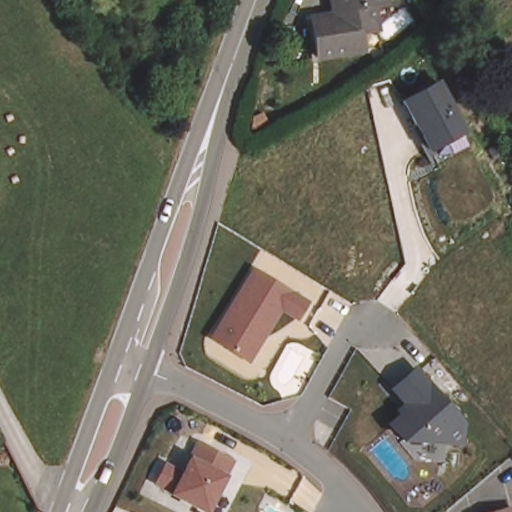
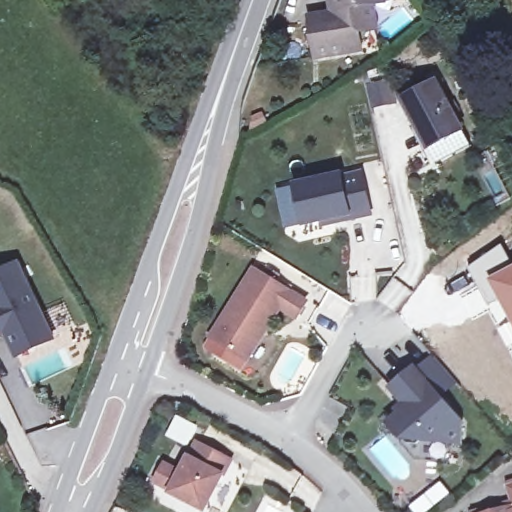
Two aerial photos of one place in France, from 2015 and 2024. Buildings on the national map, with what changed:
unchanged [(395,0),(395,4),(374,6),(377,31),(361,33),(363,51),(317,56),(312,16),(330,15),(337,14),(336,0),(395,0)]
unchanged [(402,101),(435,81),(462,133),(425,152),(402,101)]
new [(391,82),(396,104),(372,109),(368,87),(391,82)]
new [(324,223),(307,227),(297,188),(344,177),(345,184),(365,180),(373,216),(336,225),(325,227),(324,223)]
new [(502,244),(512,259),(512,267),(489,281),(499,305),(489,309),(467,269),(502,244)]
new [(499,305),(489,281),(512,267),(512,328),(499,305)]
unchanged [(299,322),(280,312),(250,364),(211,341),(252,268),(310,302),(299,322)]
new [(0,292),(0,277),(15,270),(52,343),(17,361),(0,328),(0,305),(5,303),(0,292)]
unchanged [(463,419),(464,446),(401,444),(388,425),(395,418),(391,411),(400,403),(389,389),(417,367),(463,419)]
unchanged [(227,477),(209,512),(203,512),(169,496),(170,491),(155,485),(165,462),(180,471),(187,455),(194,439),(235,461),(227,477)]
unchanged [(512,507),(512,512),(492,512),(512,507)]

